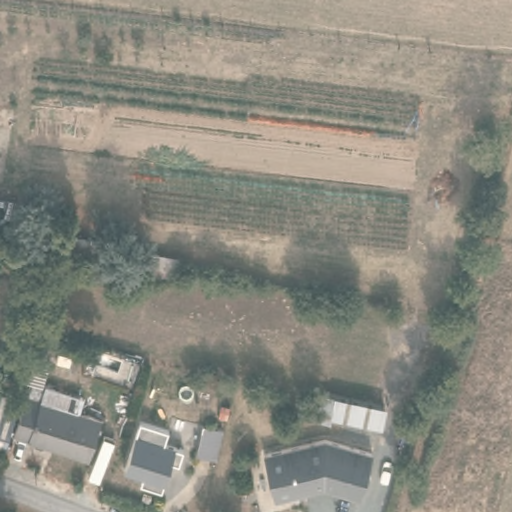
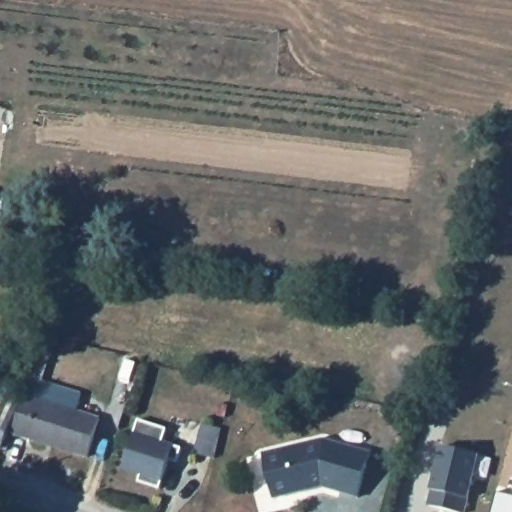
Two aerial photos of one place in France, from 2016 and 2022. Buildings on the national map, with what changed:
unchanged [(41,249),(45,229),(84,236),(84,242),(114,247),(111,263),(41,249)]
unchanged [(125,378),(131,358),(143,361),(136,381),(125,378)]
unchanged [(90,462),(14,437),(26,400),(31,386),(67,399),(64,412),(103,424),(90,462)]
unchanged [(9,456),(4,454),(0,453),(0,399),(21,406),(6,446),(11,448),(9,456)]
unchanged [(139,421),(170,431),(166,444),(184,450),(179,466),(170,463),(162,491),(140,484),(142,476),(124,472),(139,421)]
unchanged [(223,431),(217,458),(197,453),(201,426),(223,431)]
unchanged [(273,496),(262,451),(322,437),(369,451),(357,495),(322,484),(301,489),(273,496)]
new [(432,488),(442,444),(478,453),(464,512),(461,512),(429,504),(433,489),(432,488)]

